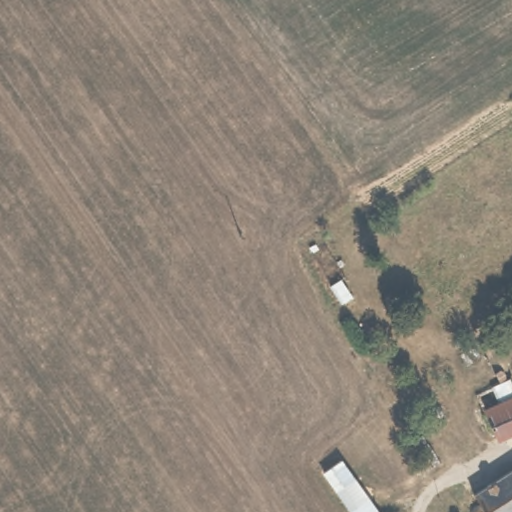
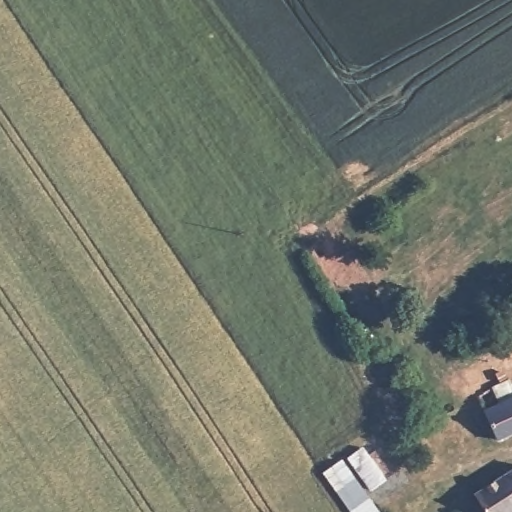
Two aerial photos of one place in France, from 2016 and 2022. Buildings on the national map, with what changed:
unchanged [(512,382),(512,437),(498,444),(475,393),(510,377),(512,382)]
unchanged [(347,512),(318,473),(342,457),(381,512),(347,512)]
unchanged [(481,500),(475,491),(497,477),(512,467),(512,510),(508,512),(474,512),(472,507),(481,500)]

